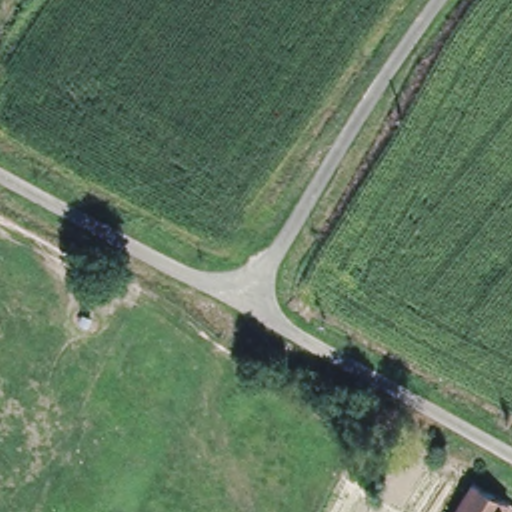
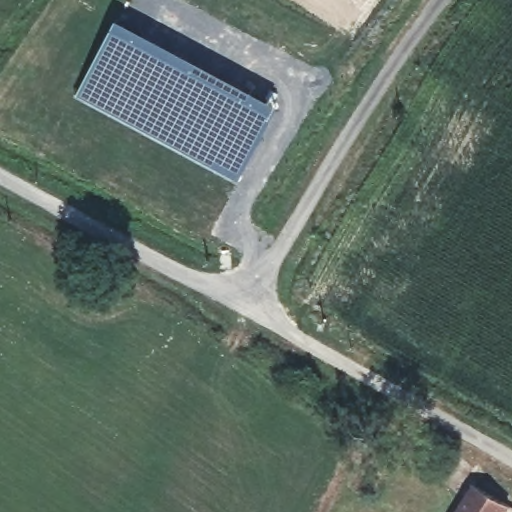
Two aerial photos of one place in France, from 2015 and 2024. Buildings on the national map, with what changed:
new [(117,18),(279,104),(239,183),(75,95),(117,18)]
unchanged [(512,506),(512,512),(453,512),(471,483),(512,506)]

